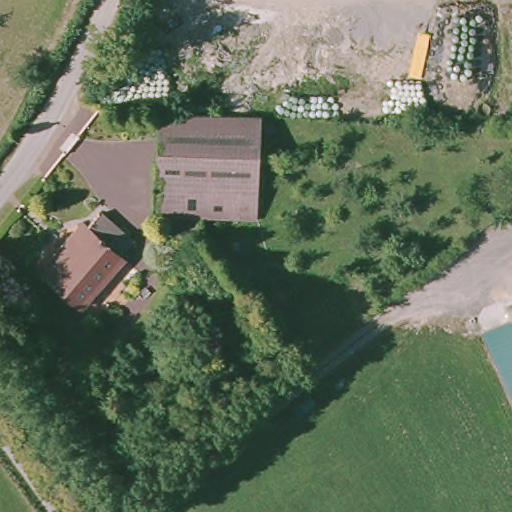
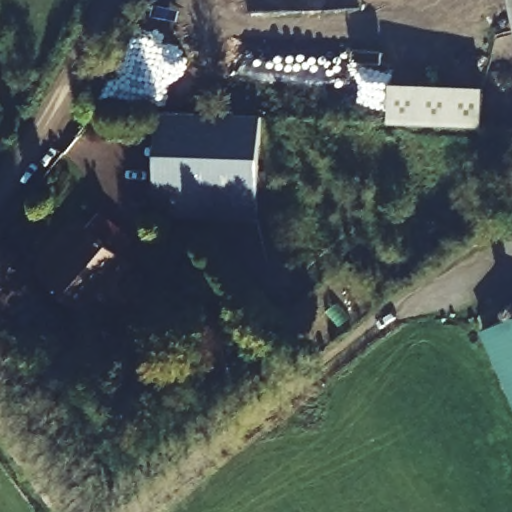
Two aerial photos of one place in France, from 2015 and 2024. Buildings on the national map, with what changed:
new [(484,85),(482,120),(465,119),(465,110),(455,110),(454,124),(389,121),(391,80),(484,85)]
unchanged [(254,214),(185,210),(150,208),(155,117),(260,121),(254,214)]
unchanged [(37,275),(75,225),(80,229),(89,216),(107,230),(105,234),(122,245),(114,255),(119,259),(80,310),(37,275)]
unchanged [(512,316),(512,394),(482,328),(512,316)]

